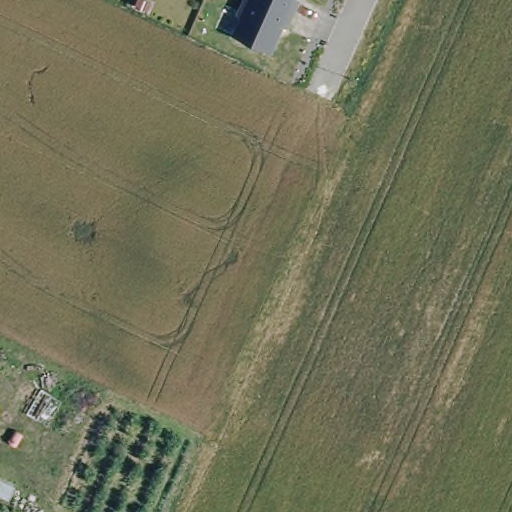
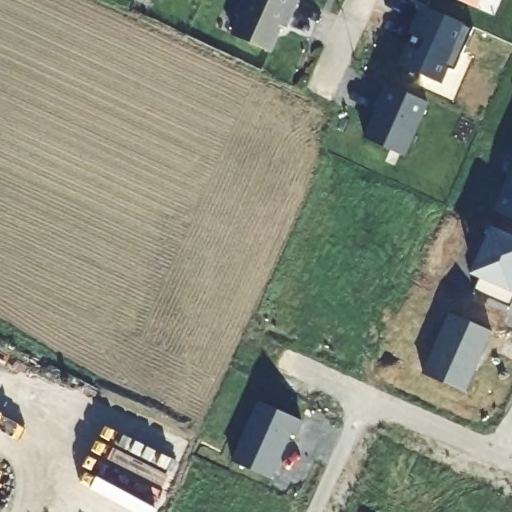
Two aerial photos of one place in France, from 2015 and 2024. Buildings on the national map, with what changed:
unchanged [(231,35),(240,17),(235,15),(242,0),(296,0),(283,28),(280,26),(267,52),(231,35)]
new [(457,0),(480,0),(477,9),(457,0)]
new [(412,35),(408,33),(422,5),(425,7),(472,29),(453,70),(449,67),(442,84),(398,63),(412,35)]
new [(404,157),(364,139),(389,84),(429,102),(404,157)]
new [(512,168),(512,218),(492,210),(512,168)]
new [(492,227),(512,236),(512,300),(509,306),(475,290),(480,277),(470,273),(492,227)]
new [(492,332),(465,392),(422,373),(449,313),(492,332)]
new [(304,421),(297,437),(292,435),(272,479),(232,461),(259,401),(304,421)]

